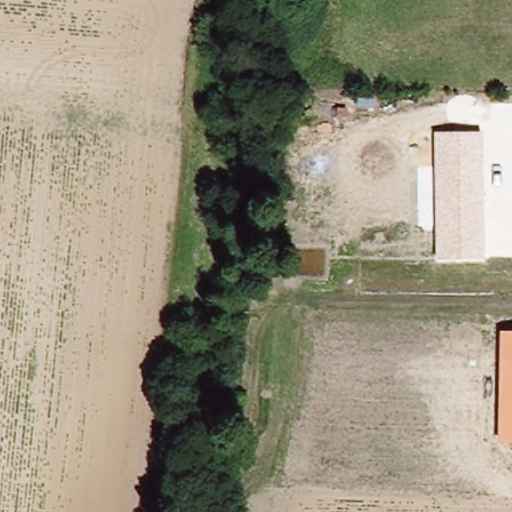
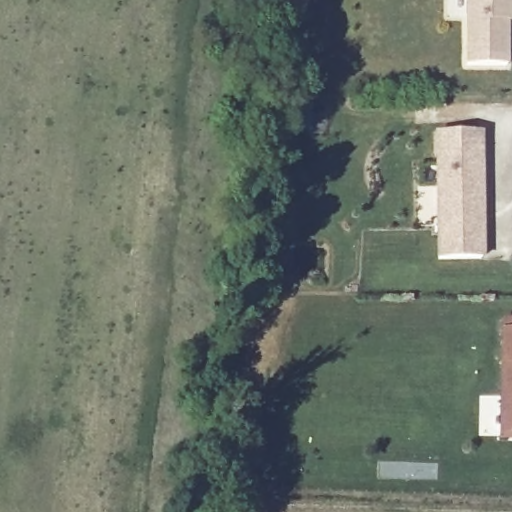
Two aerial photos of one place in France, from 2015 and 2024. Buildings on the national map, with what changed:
new [(510,64),(470,64),(470,0),(512,0),(512,10),(510,12),(510,64)]
unchanged [(485,259),(435,260),(435,134),(483,132),(485,259)]
unchanged [(500,331),(512,331),(512,443),(497,442),(500,331)]

